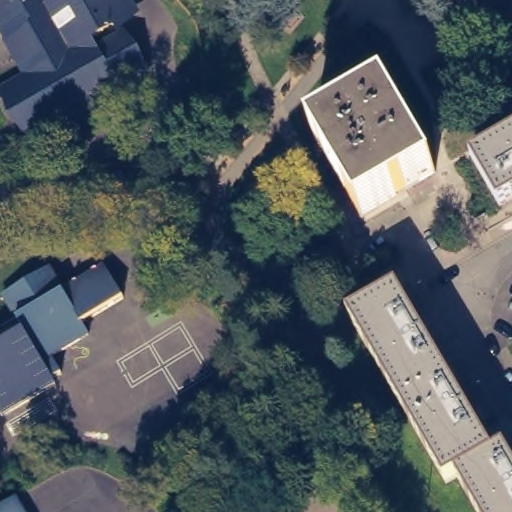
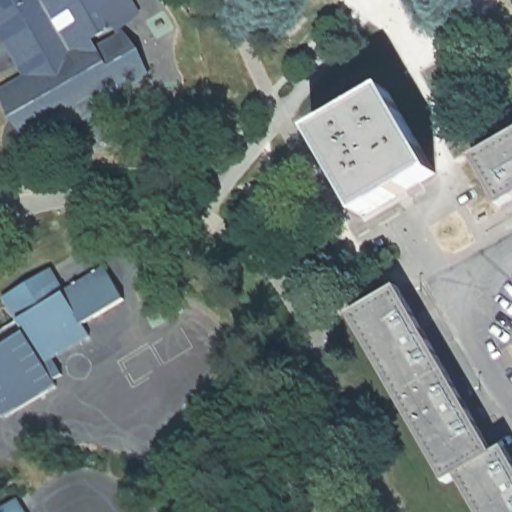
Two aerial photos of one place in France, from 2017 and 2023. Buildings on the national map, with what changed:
unchanged [(123,0),(128,9),(103,24),(85,35),(90,44),(115,30),(137,68),(86,97),(90,104),(53,126),(42,108),(19,122),(0,90),(0,84),(33,64),(28,55),(17,63),(0,35),(15,26),(7,14),(0,19),(0,0),(123,0)]
unchanged [(313,128),(387,85),(435,168),(361,211),(333,163),(313,128)]
unchanged [(472,153),(482,148),(512,130),(512,193),(500,200),(472,153)]
unchanged [(50,264),(63,288),(105,263),(123,294),(82,319),(89,331),(43,359),(57,381),(2,413),(0,409),(0,326),(17,316),(3,293),(50,264)]
unchanged [(457,471),(446,477),(350,311),(397,283),(494,450),(505,444),(512,457),(512,512),(481,512),(457,471)]
unchanged [(15,494),(26,512),(0,512),(0,504),(15,494)]

